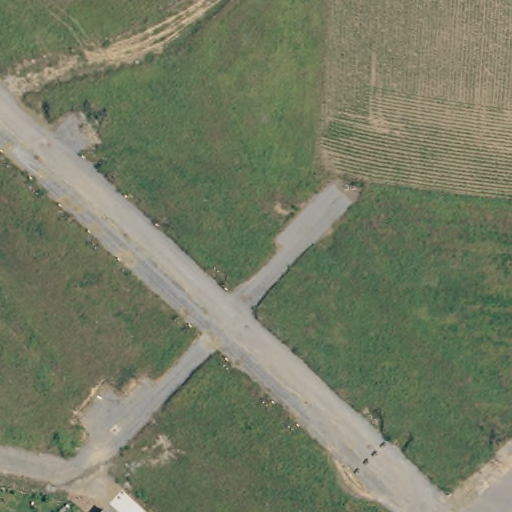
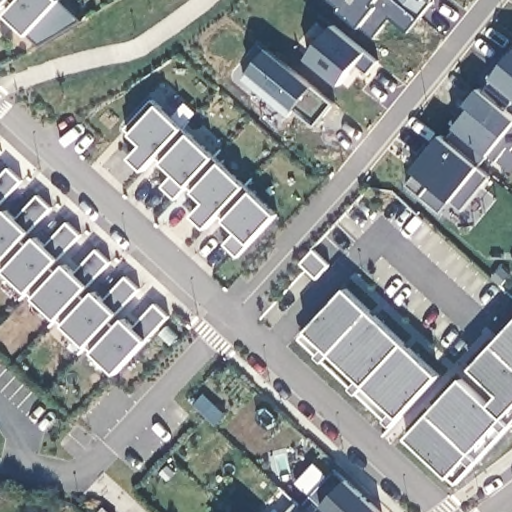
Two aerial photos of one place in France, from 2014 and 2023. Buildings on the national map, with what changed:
new [(0,9),(0,0),(8,0),(0,10),(0,9)]
new [(28,35),(5,15),(17,3),(14,0),(60,0),(28,35)]
new [(420,15),(402,0),(432,0),(431,1),(420,15)]
new [(333,26),(365,52),(378,61),(369,72),(356,62),(339,85),(307,60),(333,26)]
new [(511,105),(488,87),(494,79),(512,55),(512,104),(511,105)]
new [(474,107),(468,102),(480,86),(512,113),(512,145),(511,145),(502,157),(492,151),(488,156),(454,129),(474,107)]
new [(158,105),(276,215),(250,244),(237,256),(224,245),(238,231),(225,220),(228,216),(221,211),(206,228),(193,215),(205,202),(194,192),(198,187),(190,181),(187,185),(175,199),(162,186),(175,174),(162,162),(166,159),(159,152),(144,170),(131,157),(143,145),(131,134),(134,131),(126,128),(152,100),(158,105)]
new [(479,167),(488,176),(463,210),(452,200),(443,211),(407,184),(416,174),(413,170),(441,136),(479,167)]
new [(22,180),(0,203),(0,178),(8,168),(22,180)]
new [(146,340),(116,373),(93,352),(98,347),(90,341),(86,346),(63,325),(67,321),(60,315),(57,320),(35,298),(37,295),(30,288),(28,292),(5,271),(9,267),(1,261),(0,263),(0,217),(7,210),(18,220),(38,196),(52,207),(29,231),(22,239),(29,245),(36,238),(47,248),(67,223),(80,235),(58,258),(51,266),(58,273),(66,265),(76,275),(97,250),(110,262),(88,286),(80,293),(88,300),(95,292),(106,301),(126,277),(139,289),(117,313),(109,320),(117,327),(124,320),(135,330),(155,305),(168,316),(146,340)]
new [(345,288),(439,375),(400,418),(306,331),(345,288)]
new [(461,378),(490,405),(499,395),(470,369),(512,324),(512,409),(504,418),(449,477),(407,438),(461,378)]
new [(306,331),(400,418),(393,425),(299,338),(306,331)]
new [(504,418),(512,409),(512,424),(457,484),(449,477),(504,418)]
new [(334,469),(380,512),(307,512),(300,506),(334,469)]
new [(295,501),(298,503),(300,506),(307,512),(285,512),(295,501)]

